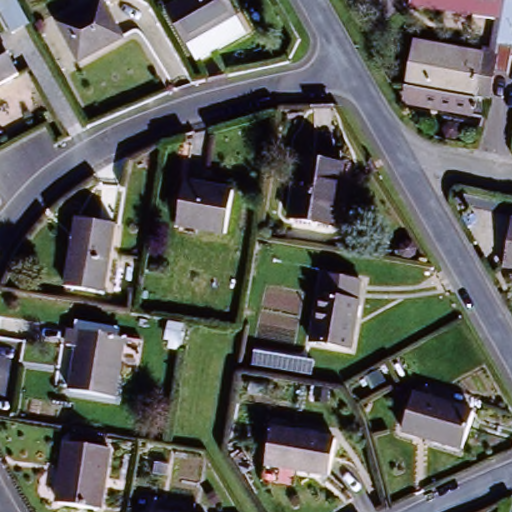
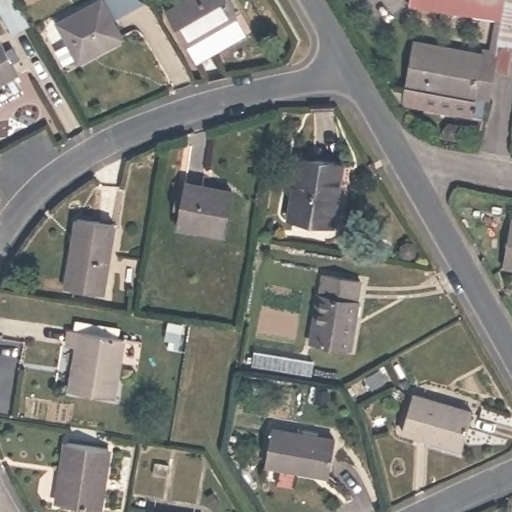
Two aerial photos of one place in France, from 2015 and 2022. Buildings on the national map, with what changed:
unchanged [(10,33),(0,12),(0,0),(19,0),(30,24),(10,33)]
unchanged [(94,0),(100,0),(118,37),(83,57),(63,16),(94,0)]
unchanged [(181,0),(226,0),(233,15),(187,40),(170,6),(181,0)]
unchanged [(501,24),(412,10),(414,0),(512,0),(512,78),(498,77),(492,124),(420,116),(422,98),(407,95),(414,42),(500,54),(501,24)]
unchanged [(16,74),(0,83),(0,41),(16,74)]
unchanged [(345,164),(335,217),(295,210),(304,156),(345,164)]
unchanged [(236,199),(227,241),(182,233),(190,191),(236,199)]
unchanged [(118,234),(105,296),(68,288),(80,228),(118,234)]
unchanged [(512,248),(512,264),(510,263),(512,248)]
unchanged [(313,294),(322,295),(326,277),(355,282),(352,298),(363,300),(355,347),(305,340),(313,294)]
unchanged [(131,341),(120,400),(77,392),(83,357),(75,356),(80,332),(131,341)]
unchanged [(475,406),(468,443),(405,432),(412,396),(475,406)]
unchanged [(338,437),(330,475),(268,465),(276,427),(338,437)]
unchanged [(114,474),(106,510),(52,500),(58,465),(114,474)]
unchanged [(160,512),(160,510),(170,512),(160,512)]

